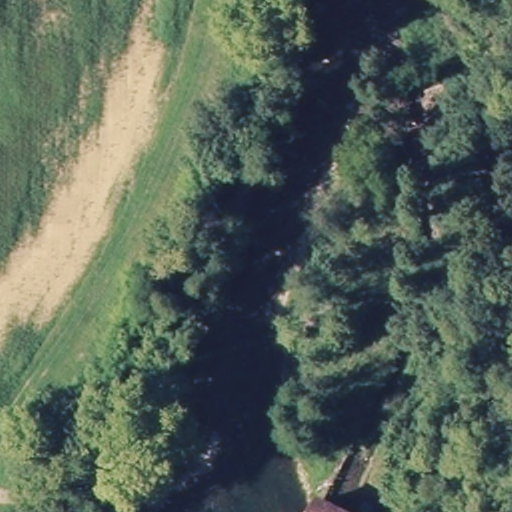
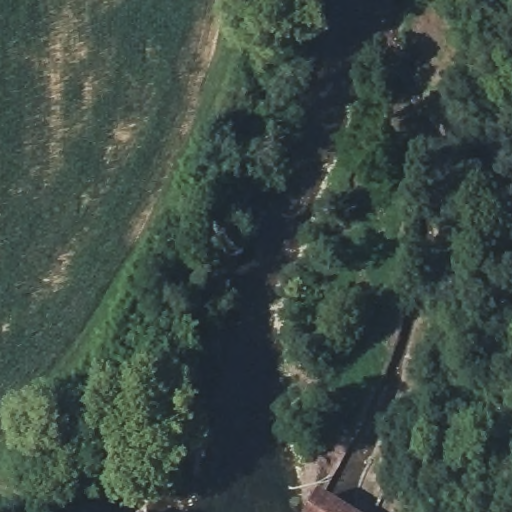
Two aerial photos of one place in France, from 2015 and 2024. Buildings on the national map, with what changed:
unchanged [(336,512),(303,512),(311,498),(336,512)]

